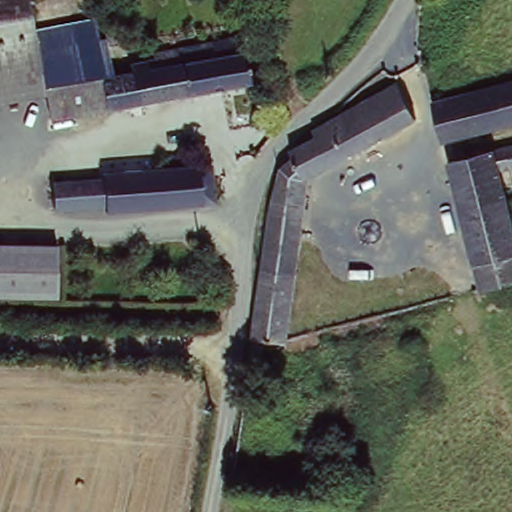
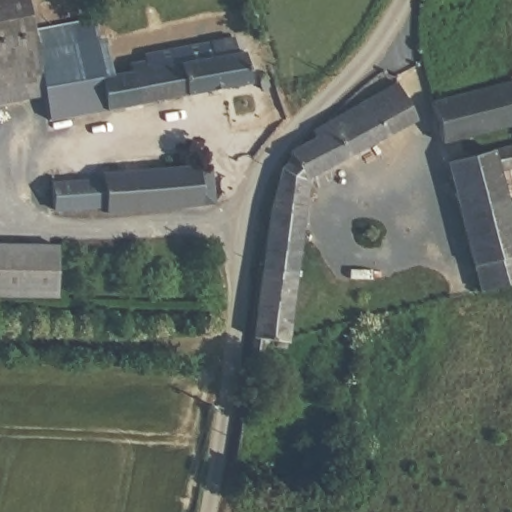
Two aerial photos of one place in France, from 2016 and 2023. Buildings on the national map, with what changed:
unchanged [(0,0),(27,0),(36,40),(46,87),(0,97),(0,0)]
unchanged [(36,40),(91,27),(94,41),(102,40),(109,75),(46,87),(36,40)]
unchanged [(109,75),(132,71),(130,60),(151,56),(152,60),(175,56),(177,50),(230,41),(233,59),(245,59),(249,89),(222,94),(54,124),(46,87),(109,75)]
unchanged [(281,166),(298,160),(296,149),(318,137),(317,129),(328,118),(402,76),(420,115),(310,177),(306,197),(302,198),(291,201),(288,201),(276,205),(280,176),(281,166)]
unchanged [(512,79),(512,122),(447,135),(440,134),(430,94),(512,79)]
unchanged [(457,155),(470,157),(512,145),(512,159),(496,164),(502,187),(512,229),(512,272),(475,282),(441,152),(450,154),(457,155)]
unchanged [(107,195),(52,199),(52,179),(102,176),(101,164),(211,159),(212,195),(205,197),(202,199),(192,199),(184,200),(150,202),(109,202),(107,195)]
unchanged [(266,189),(272,178),(280,176),(276,205),(288,201),(291,201),(282,315),(266,315),(263,339),(252,341),(266,189)]
unchanged [(0,293),(0,244),(56,247),(54,296),(0,293)]

